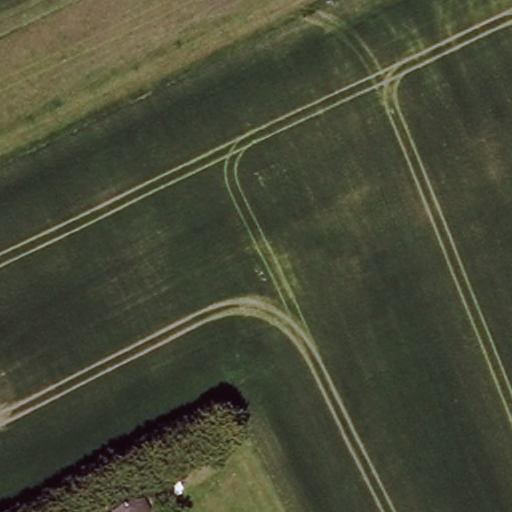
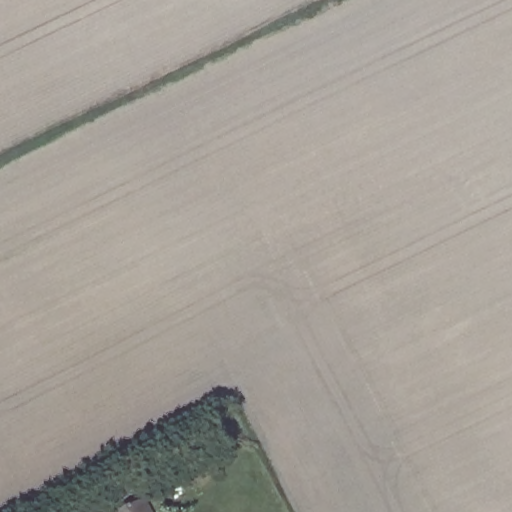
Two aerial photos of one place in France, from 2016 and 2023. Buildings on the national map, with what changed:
unchanged [(149,512),(118,512),(142,499),(149,512)]

